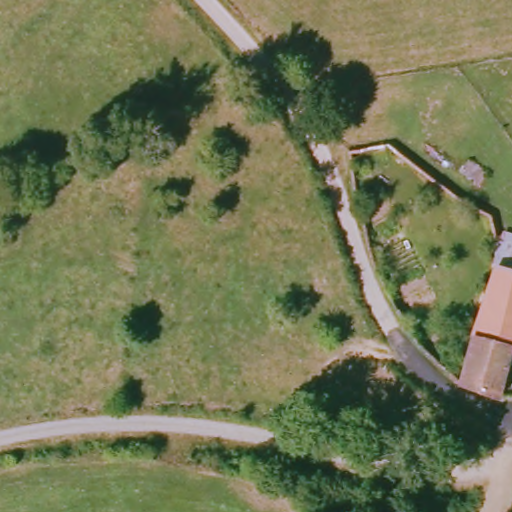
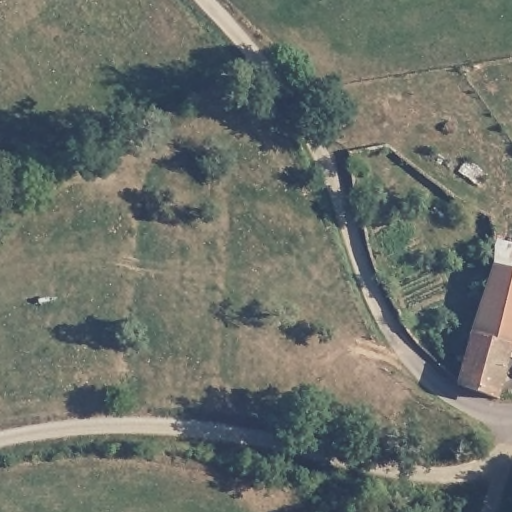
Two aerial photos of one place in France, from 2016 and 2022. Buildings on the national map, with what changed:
unchanged [(491,265),(498,239),(512,243),(512,270),(491,265)]
unchanged [(452,382),(491,265),(512,270),(512,347),(504,346),(493,395),(452,382)]

